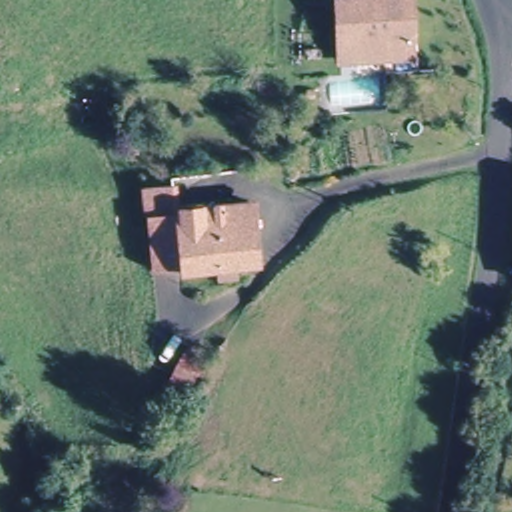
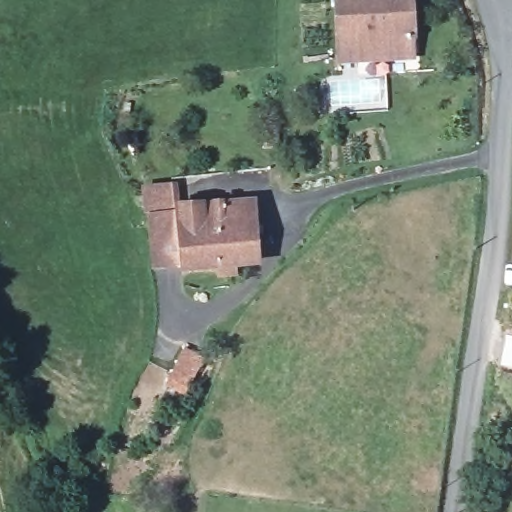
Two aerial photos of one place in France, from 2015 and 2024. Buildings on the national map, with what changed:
unchanged [(338,0),(411,0),(413,38),(411,38),(413,59),(358,62),(341,64),(339,31),(338,0)]
unchanged [(246,204),(250,263),(177,270),(176,268),(149,270),(141,189),(170,186),(173,208),(246,204)]

